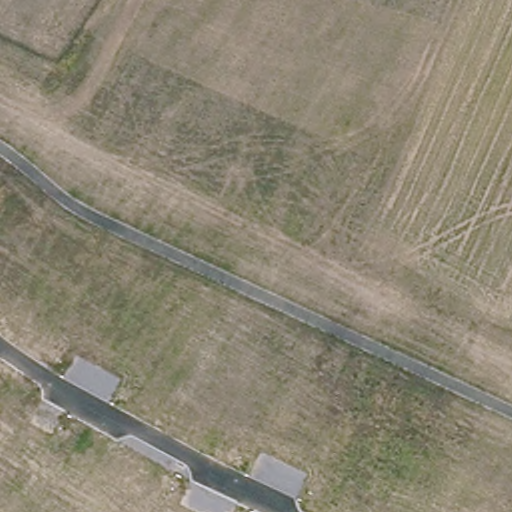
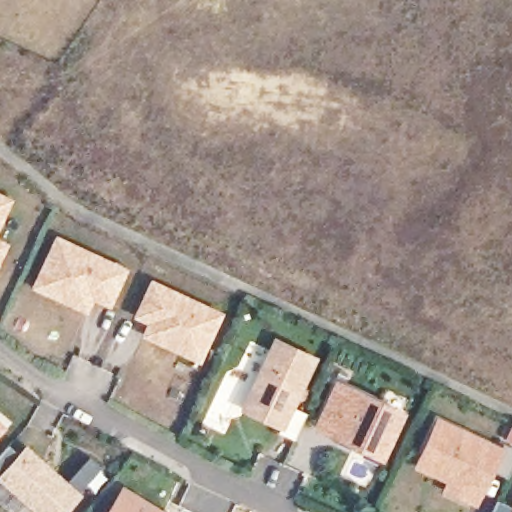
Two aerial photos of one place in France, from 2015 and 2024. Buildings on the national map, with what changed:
new [(0,230),(0,192),(15,199),(0,230)]
new [(33,286),(56,233),(130,267),(111,306),(95,298),(88,310),(33,286)]
new [(0,263),(0,238),(10,242),(0,263)]
new [(142,336),(147,324),(134,318),(151,279),(226,312),(202,362),(142,336)]
unchanged [(281,335),(319,353),(297,401),(311,408),(299,434),(284,427),(286,422),(248,404),(281,335)]
new [(315,428),(337,380),(408,412),(386,460),(315,428)]
unchanged [(0,431),(0,415),(8,422),(0,431)]
new [(443,491),(447,481),(414,466),(438,416),(512,449),(512,468),(508,477),(494,471),(478,507),(443,491)]
new [(38,512),(0,476),(0,455),(11,444),(20,451),(26,444),(83,494),(67,512),(38,512)]
unchanged [(175,512),(110,512),(128,483),(170,509),(175,512)]
new [(512,504),(512,512),(495,512),(501,499),(512,504)]

